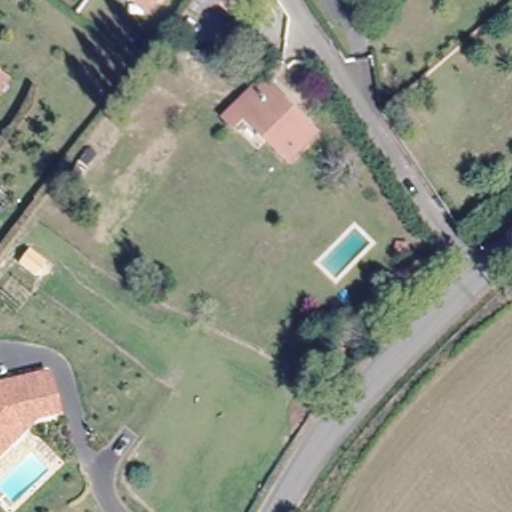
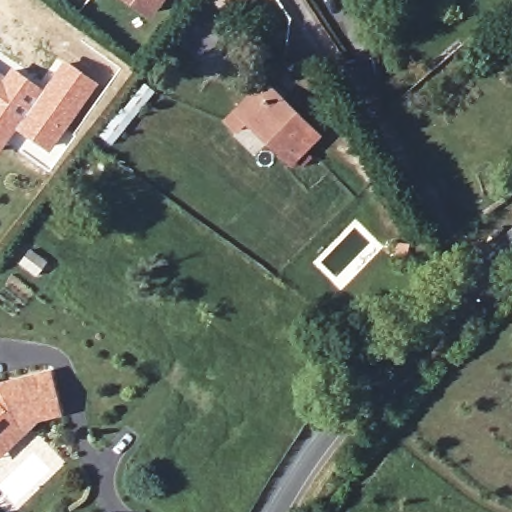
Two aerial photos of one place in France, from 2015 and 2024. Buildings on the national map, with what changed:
unchanged [(119,0),(157,0),(147,12),(142,18),(119,0)]
unchanged [(223,0),(258,0),(260,1),(241,24),(218,6),(223,0)]
new [(98,83),(49,152),(16,130),(0,152),(0,83),(12,66),(43,89),(63,58),(98,83)]
new [(143,81),(155,91),(111,145),(98,135),(143,81)]
unchanged [(285,162),(246,123),(236,113),(260,86),(272,97),(310,134),(285,162)]
unchanged [(378,272),(367,267),(372,255),(383,259),(378,272)]
unchanged [(54,413),(55,418),(33,423),(0,456),(0,389),(45,378),(54,413)]

